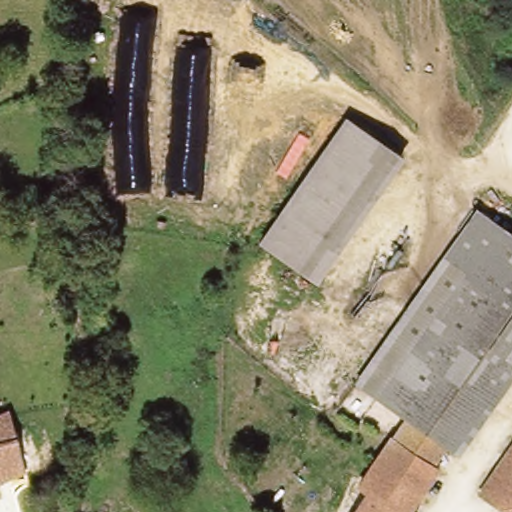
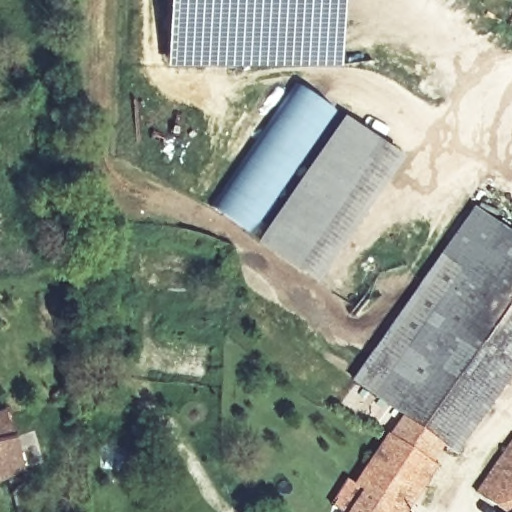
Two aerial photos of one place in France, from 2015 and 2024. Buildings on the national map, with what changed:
new [(341,61),(166,61),(166,0),(340,0),(341,61)]
new [(213,205),(297,84),(336,112),(251,234),(213,205)]
unchanged [(375,136),(403,155),(372,202),(332,259),(318,280),(284,256),(264,242),(349,117),(375,136)]
unchanged [(470,437),(459,454),(447,446),(407,422),(399,413),(357,383),(413,305),(480,211),(512,234),(512,376),(501,393),(470,437)]
unchanged [(17,442),(27,473),(6,480),(0,482),(0,413),(9,410),(17,442)]
unchanged [(393,435),(399,425),(407,422),(447,446),(434,464),(393,435)]
unchanged [(362,487),(393,435),(434,464),(440,468),(410,512),(355,512),(368,494),(362,487)]
unchanged [(512,448),(512,512),(507,512),(481,495),(512,448)]

